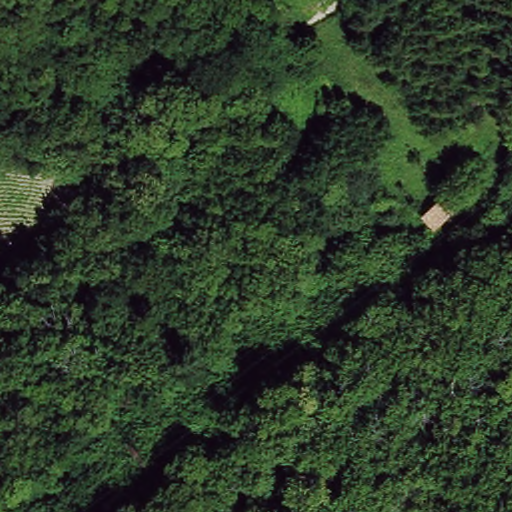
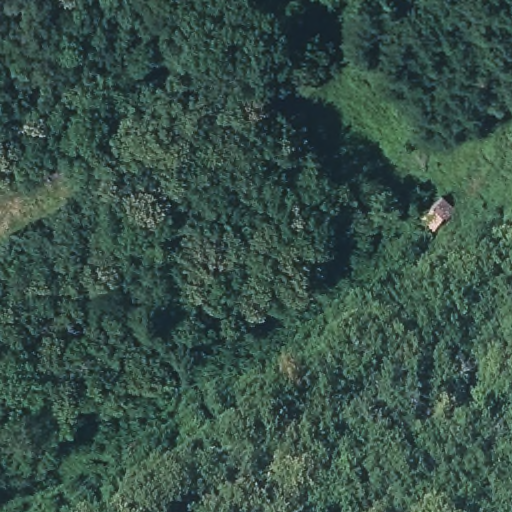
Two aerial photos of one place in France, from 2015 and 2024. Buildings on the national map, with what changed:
unchanged [(451,217),(439,230),(427,217),(439,206),(451,217)]

